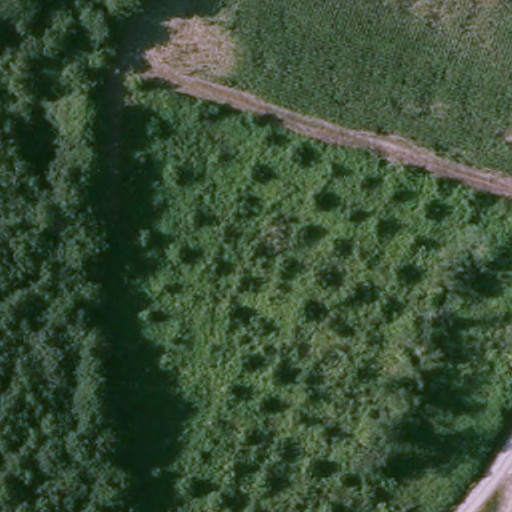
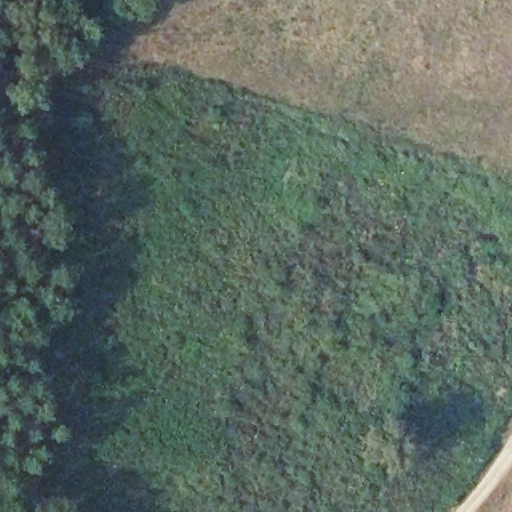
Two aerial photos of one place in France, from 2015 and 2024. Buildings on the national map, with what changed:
[]

